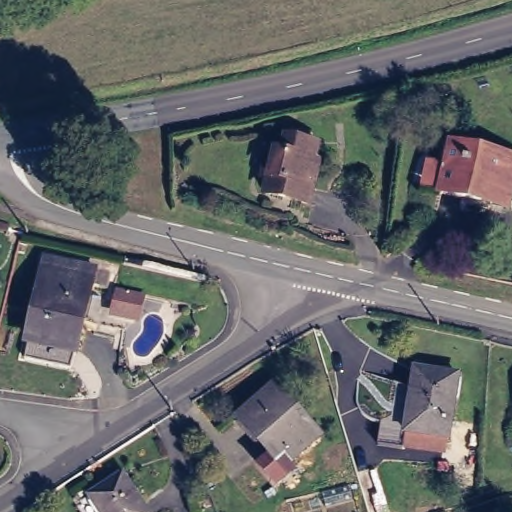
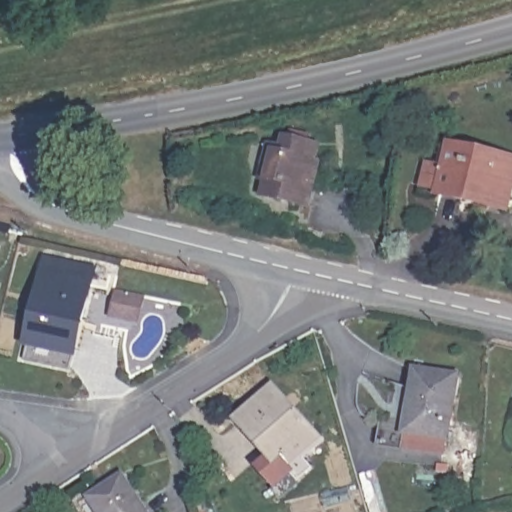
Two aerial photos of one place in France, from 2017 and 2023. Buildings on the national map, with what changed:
unchanged [(273,145),(288,149),(290,140),(324,150),(320,164),(324,164),(312,205),(266,193),(271,176),(264,174),(273,145)]
unchanged [(448,193),(461,146),(512,160),(512,210),(448,193)]
unchanged [(20,348),(42,250),(100,267),(77,358),(20,348)]
unchanged [(425,357),(466,361),(456,425),(417,419),(425,357)]
unchanged [(320,434),(286,461),(294,472),(274,489),(256,466),(272,452),(265,441),(256,446),(237,419),(245,413),(278,387),(320,434)]
unchanged [(456,425),(450,459),(412,454),(417,419),(456,425)]
unchanged [(91,491),(125,466),(155,512),(105,512),(91,491)]

